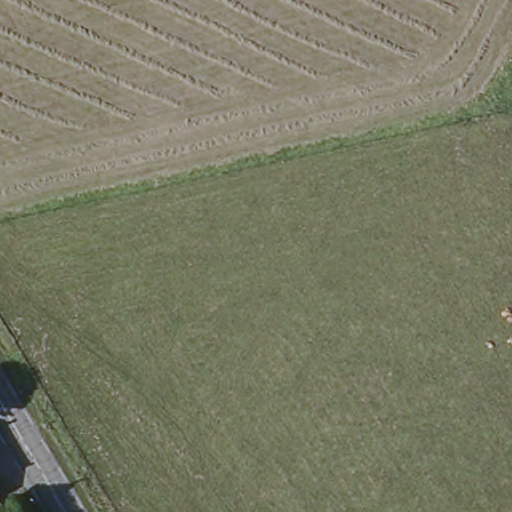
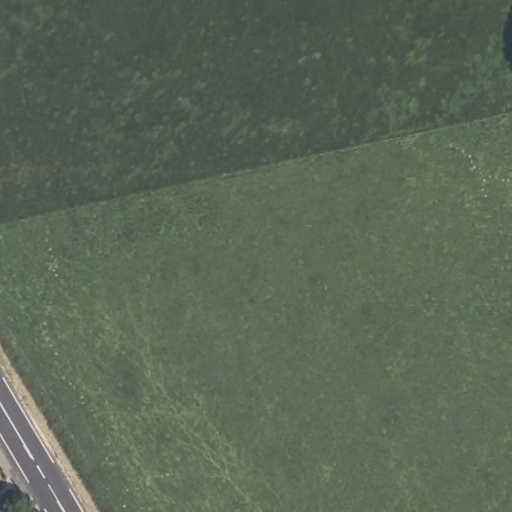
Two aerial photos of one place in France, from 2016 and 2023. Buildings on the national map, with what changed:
unchanged [(0,505),(0,487),(8,500),(0,505)]

